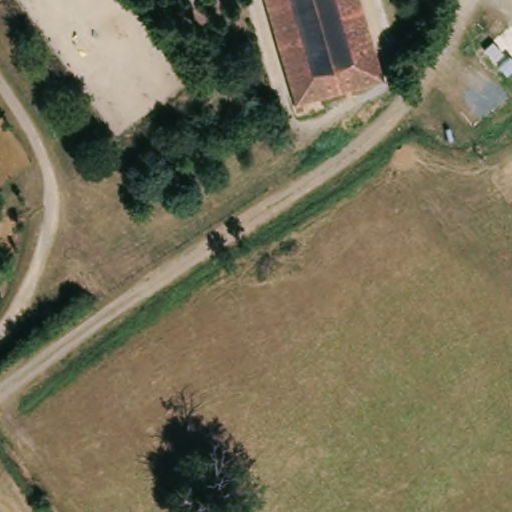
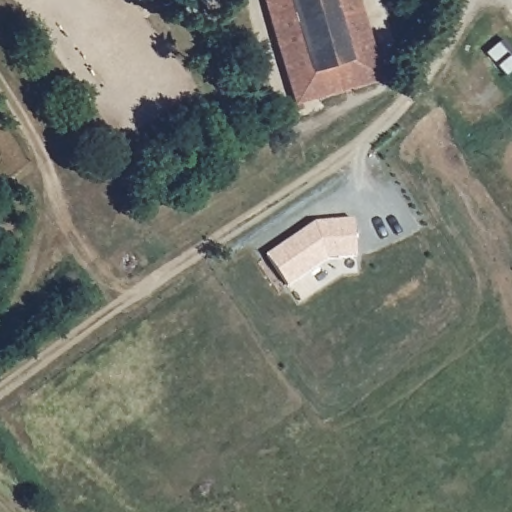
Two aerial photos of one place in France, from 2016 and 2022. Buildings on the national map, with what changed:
unchanged [(305,105),(307,112),(297,115),(263,0),(352,0),(376,80),(305,105)]
new [(327,260),(287,288),(264,258),(316,223),(355,219),(357,258),(327,260)]

